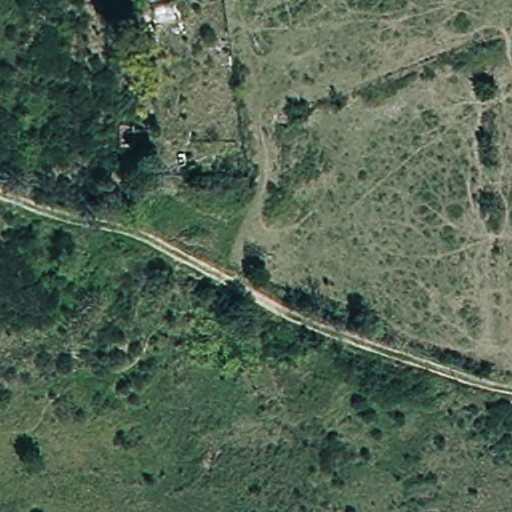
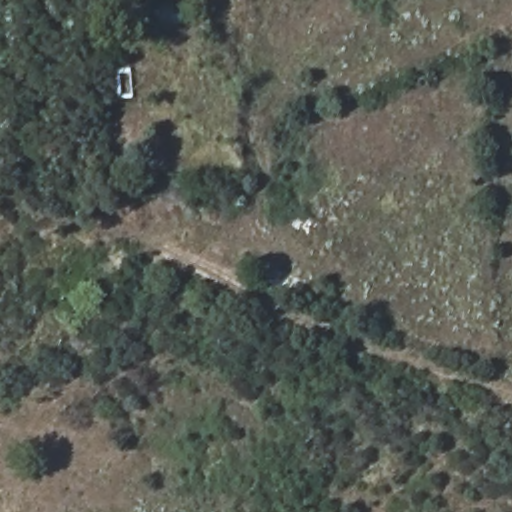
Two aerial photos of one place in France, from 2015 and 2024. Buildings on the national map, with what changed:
unchanged [(153,25),(155,12),(175,11),(175,24),(153,25)]
unchanged [(121,125),(142,127),(141,149),(120,148),(121,125)]

